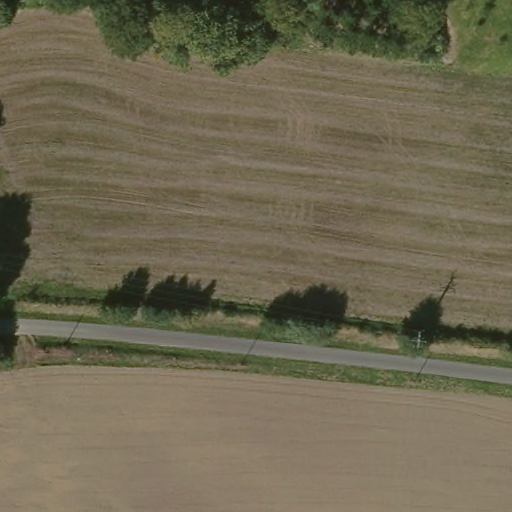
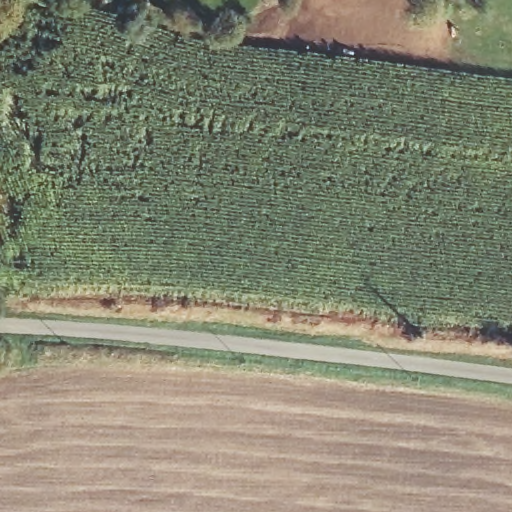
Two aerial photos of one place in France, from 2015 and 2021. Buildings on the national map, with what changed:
[]

